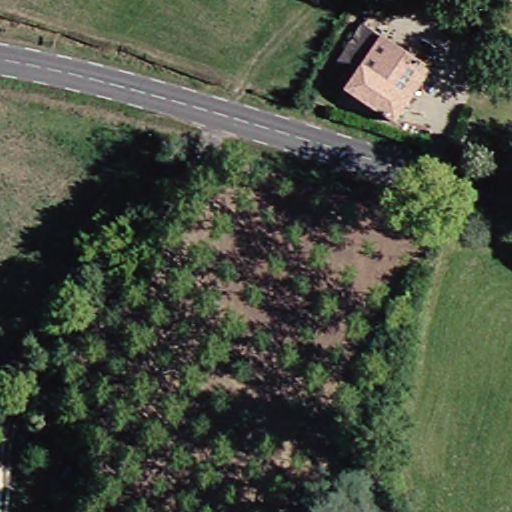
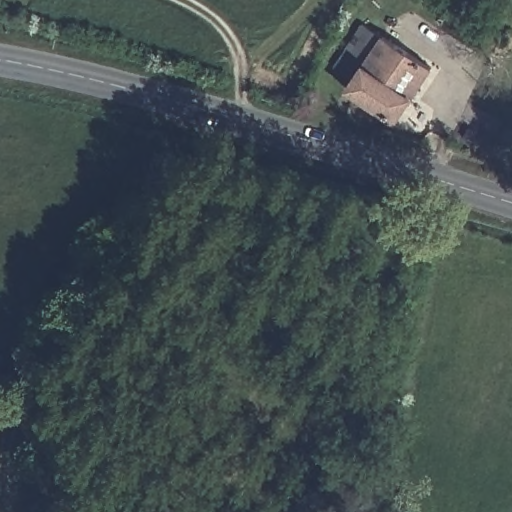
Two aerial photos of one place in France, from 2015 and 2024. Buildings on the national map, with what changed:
unchanged [(435,69),(402,119),(355,88),(367,70),(353,59),(373,27),(435,69)]

